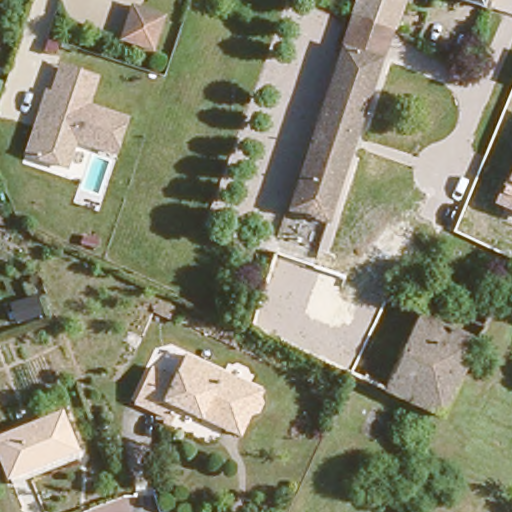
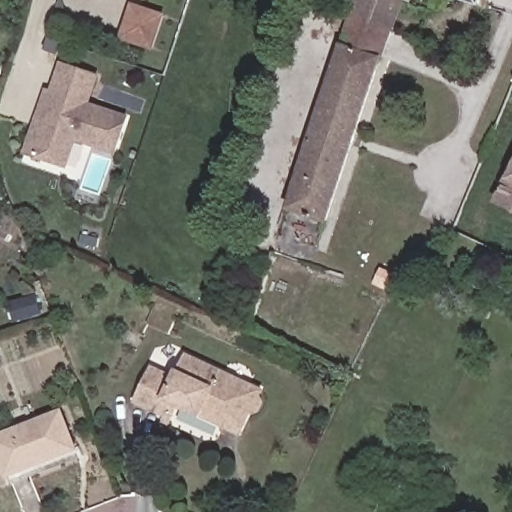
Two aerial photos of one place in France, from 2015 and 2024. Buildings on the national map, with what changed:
unchanged [(403,0),(327,220),(285,205),(354,0),(403,0)]
unchanged [(466,0),(481,0),(480,4),(466,0)]
unchanged [(155,50),(122,41),(132,6),(164,15),(155,50)]
unchanged [(115,157),(76,144),(67,172),(24,155),(45,88),(50,90),(57,60),(100,75),(91,101),(131,117),(115,157)]
unchanged [(497,197),(507,172),(510,174),(512,169),(512,204),(497,197)]
demolished [(440,415),(385,390),(421,305),(481,330),(440,415)]
unchanged [(268,381),(240,430),(221,422),(216,440),(131,403),(150,357),(175,367),(185,348),(268,381)]
unchanged [(0,453),(0,431),(61,412),(74,446),(5,468),(0,453)]

